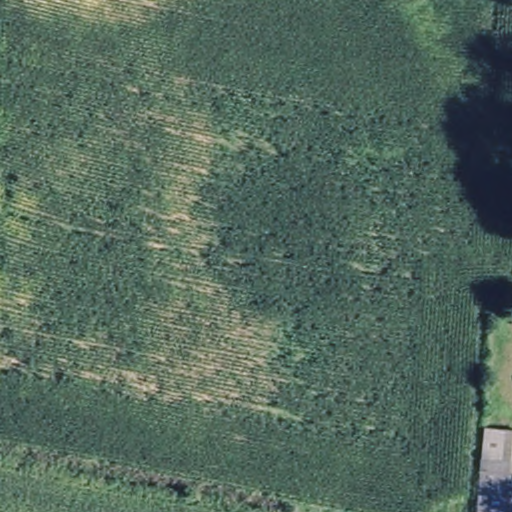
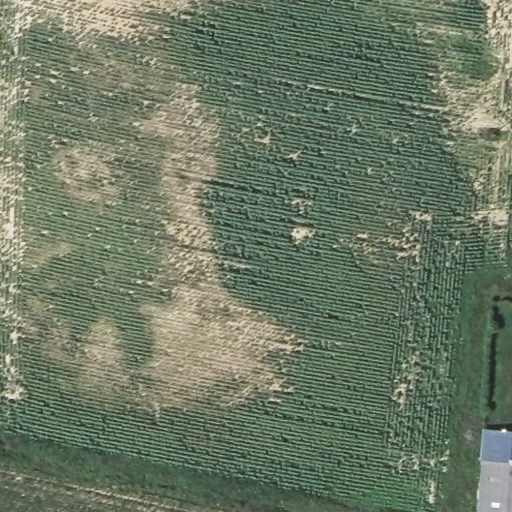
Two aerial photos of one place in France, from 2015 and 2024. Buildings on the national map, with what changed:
unchanged [(488,512),(476,512),(482,429),(497,430),(488,512)]
unchanged [(488,512),(497,430),(512,432),(512,512),(488,512)]

